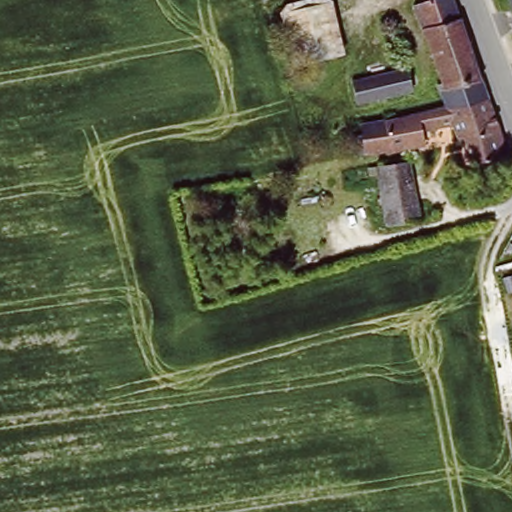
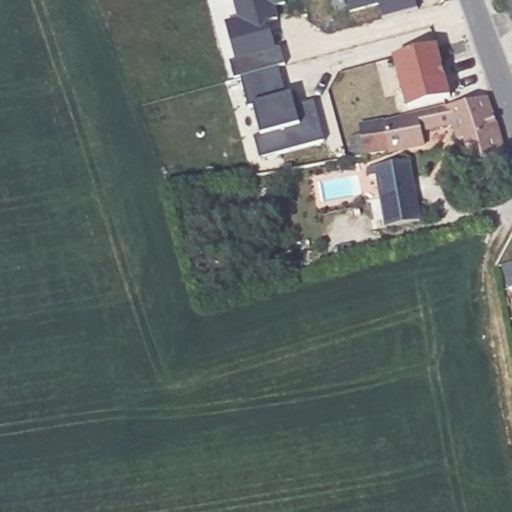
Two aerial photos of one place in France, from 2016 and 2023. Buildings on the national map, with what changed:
new [(228,60),(234,59),(224,22),(238,19),(232,0),(282,0),(283,2),(272,5),(275,19),(267,21),(274,48),(278,47),(283,64),(233,79),(228,60)]
new [(383,19),(379,4),(352,11),(348,0),(416,0),(419,7),(383,19)]
demolished [(410,5),(428,0),(448,0),(466,46),(430,59),(410,5)]
unchanged [(506,0),(512,0),(512,25),(506,0)]
new [(408,108),(394,57),(439,45),(451,95),(408,108)]
demolished [(466,46),(486,100),(444,109),(434,85),(438,84),(430,59),(466,46)]
demolished [(406,63),(410,82),(392,86),(393,90),(355,96),(350,75),(406,63)]
new [(261,159),(256,138),(262,135),(255,105),(249,107),(242,79),(280,68),(288,97),(292,96),(298,94),(301,105),(315,103),(325,141),(261,159)]
unchanged [(360,137),(358,127),(379,123),(387,121),(444,109),(486,100),(491,114),(501,140),(505,156),(469,167),(463,145),(458,146),(452,130),(420,136),(422,147),(384,155),(353,160),(349,139),(360,137)]
unchanged [(381,191),(379,183),(372,184),(371,175),(412,169),(424,226),(390,234),(381,191)]

